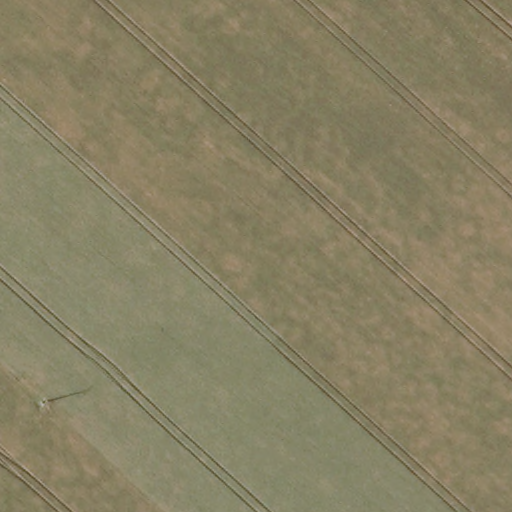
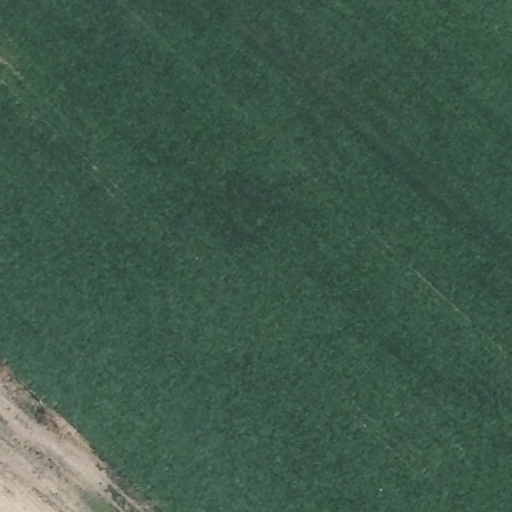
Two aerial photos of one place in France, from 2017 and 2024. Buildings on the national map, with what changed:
[]

